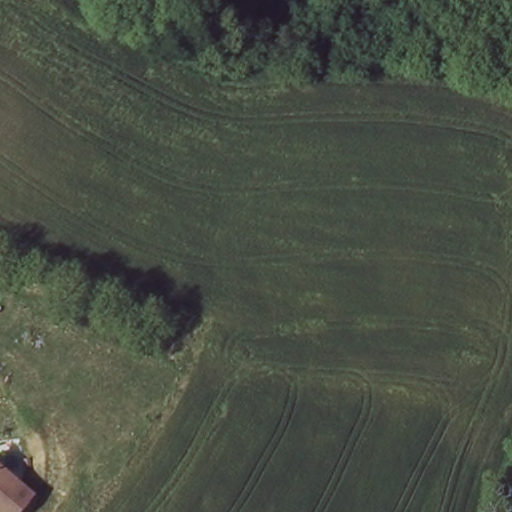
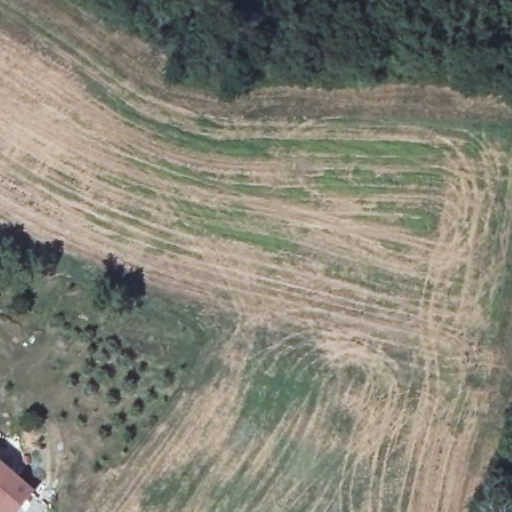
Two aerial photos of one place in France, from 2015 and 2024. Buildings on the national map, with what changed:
unchanged [(35,487),(16,512),(0,512),(0,461),(35,487)]

